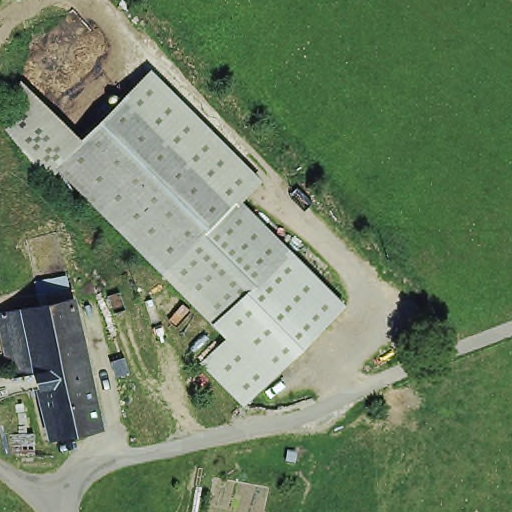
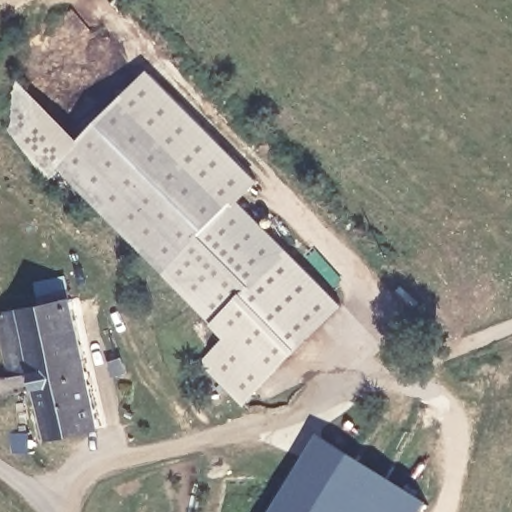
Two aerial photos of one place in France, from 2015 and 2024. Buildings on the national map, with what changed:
unchanged [(264,181),(242,200),(346,307),(246,408),(202,365),(224,337),(58,169),(48,179),(1,121),(22,79),(83,140),(151,68),(264,181)]
unchanged [(17,307),(72,296),(100,425),(48,435),(35,384),(17,307)]
unchanged [(35,384),(11,389),(0,339),(0,310),(17,307),(35,384)]
unchanged [(33,435),(34,457),(8,459),(7,436),(33,435)]
new [(440,512),(282,512),(329,440),(441,510),(440,512)]

